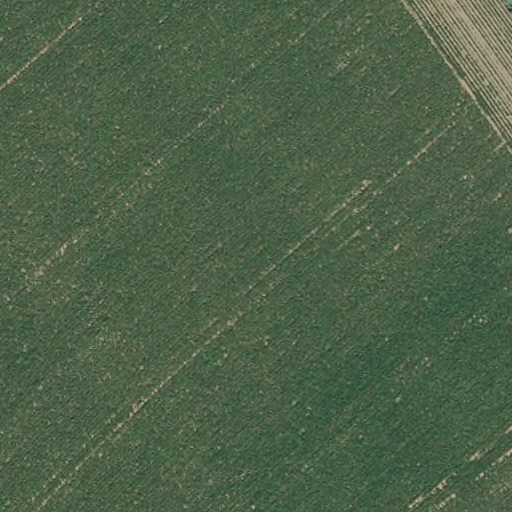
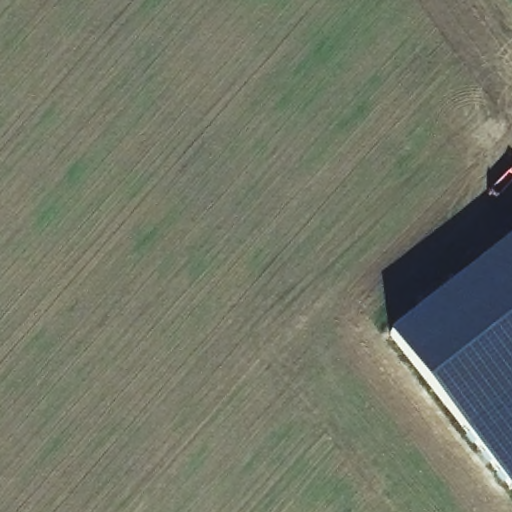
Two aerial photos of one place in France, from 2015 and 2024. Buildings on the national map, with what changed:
new [(504,488),(388,330),(512,239),(512,482),(504,488)]

